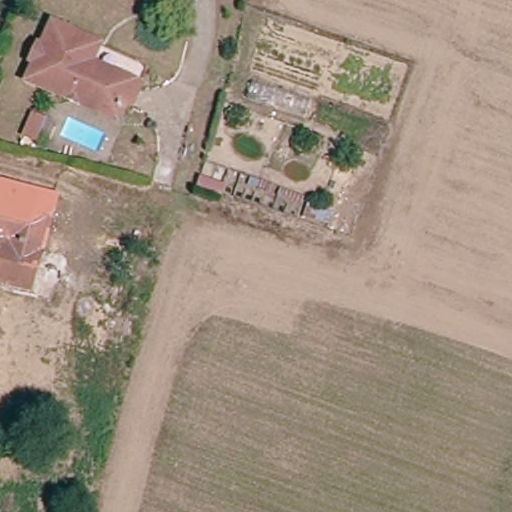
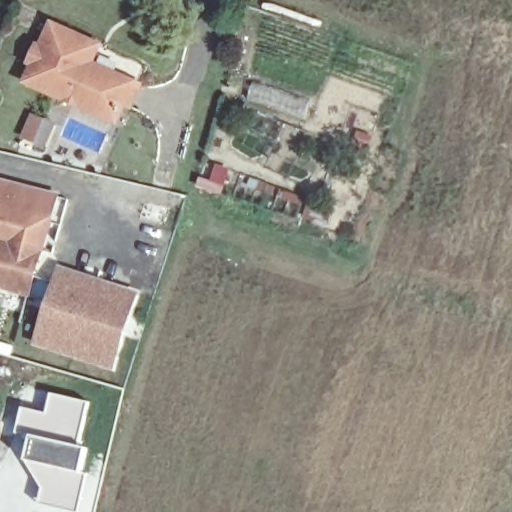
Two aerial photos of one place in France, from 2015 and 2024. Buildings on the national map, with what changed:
unchanged [(132,94),(122,91),(116,109),(32,83),(37,65),(31,63),(35,48),(41,50),(46,34),(49,24),(68,29),(96,38),(90,62),(127,72),(137,76),(132,94)]
unchanged [(34,296),(0,289),(0,247),(1,244),(0,243),(0,182),(59,197),(34,296)]
new [(34,346),(59,267),(140,291),(114,370),(34,346)]
demolished [(95,293),(82,327),(44,313),(56,280),(95,293)]
new [(54,395),(90,403),(80,448),(87,450),(82,473),(87,475),(78,512),(73,512),(42,506),(47,489),(27,460),(32,437),(21,434),(26,411),(50,416),(54,395)]
demolished [(74,512),(24,512),(24,507),(74,503),(74,512)]

